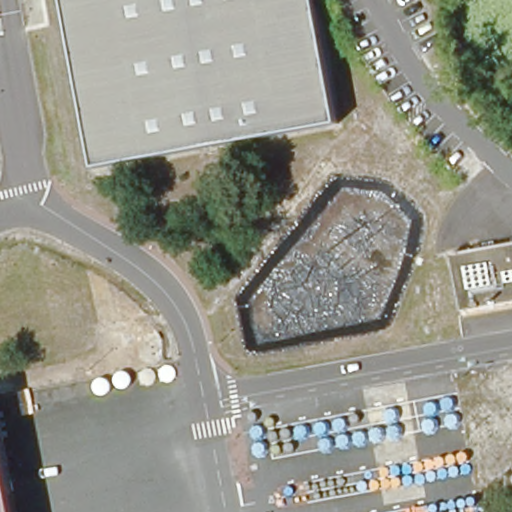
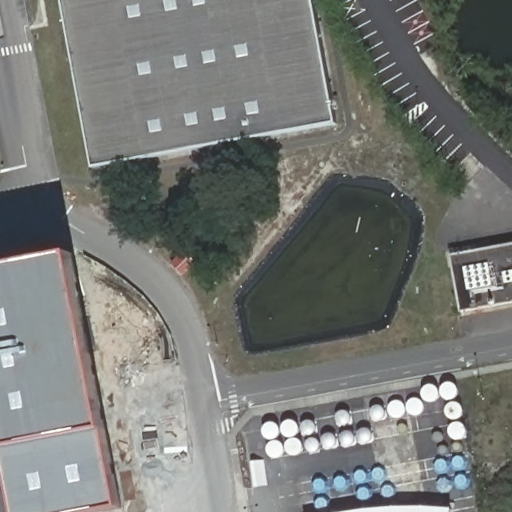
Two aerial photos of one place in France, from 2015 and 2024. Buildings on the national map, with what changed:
unchanged [(339,130),(94,172),(64,0),(317,0),(339,130)]
unchanged [(512,240),(512,300),(457,309),(449,252),(512,240)]
new [(107,432),(122,509),(103,512),(12,512),(0,453),(0,267),(72,253),(107,432)]
unchanged [(0,512),(0,452),(12,512),(0,512)]
new [(452,507),(452,512),(345,512),(367,508),(452,507)]

